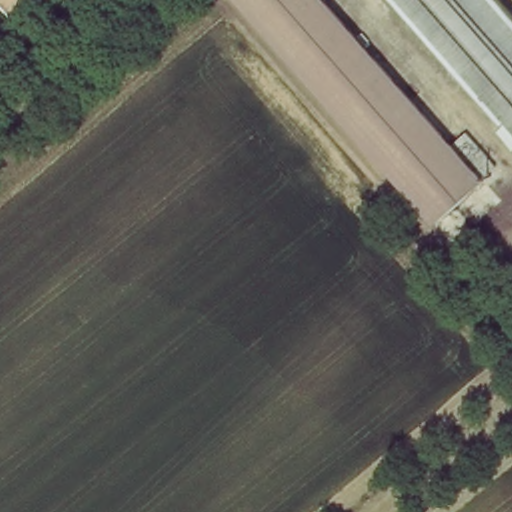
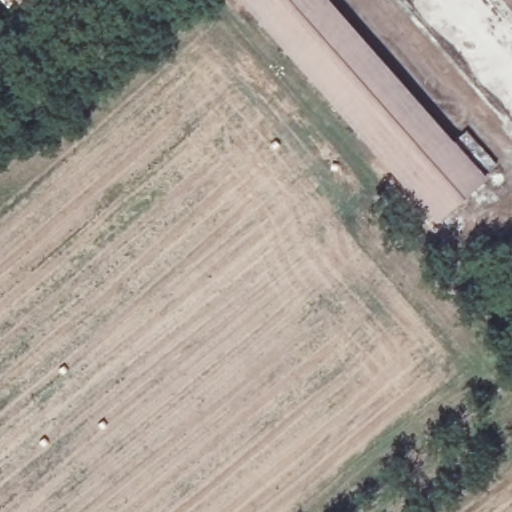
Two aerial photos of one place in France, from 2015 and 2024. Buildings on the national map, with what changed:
unchanged [(12,17),(0,4),(0,0),(31,0),(12,17)]
unchanged [(496,167),(480,181),(435,220),(240,0),(321,0),(449,146),(467,132),(496,167)]
demolished [(512,24),(512,126),(402,0),(491,0),(512,24)]

